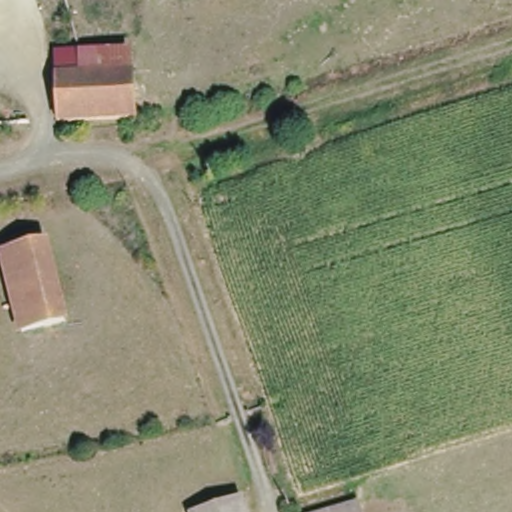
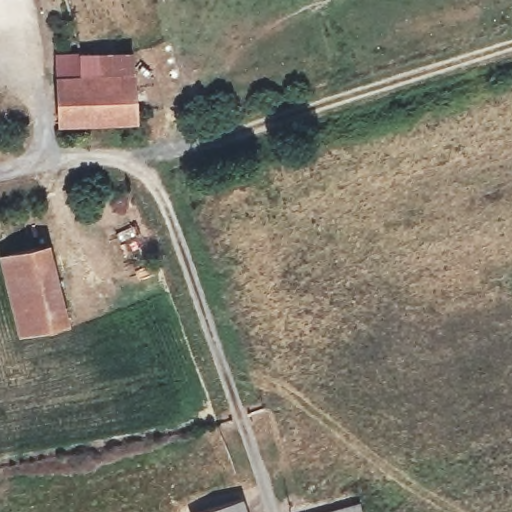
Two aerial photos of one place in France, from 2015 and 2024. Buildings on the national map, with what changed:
unchanged [(60,112),(58,63),(82,63),(132,62),(134,107),(60,112)]
unchanged [(4,121),(3,108),(38,105),(42,119),(4,121)]
unchanged [(18,328),(0,263),(0,248),(44,237),(65,316),(18,328)]
unchanged [(246,512),(189,512),(187,506),(240,491),(246,512)]
unchanged [(353,497),(358,512),(301,512),(353,497)]

